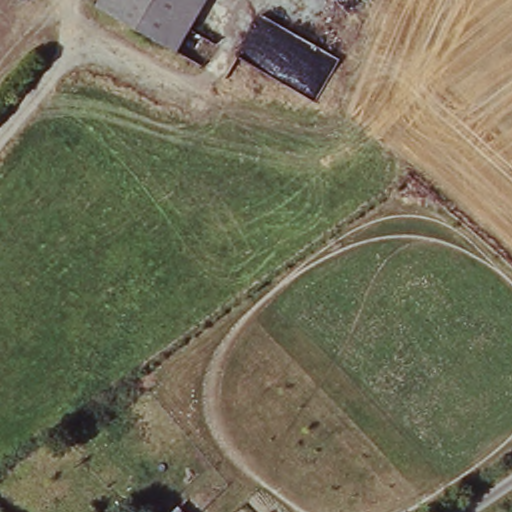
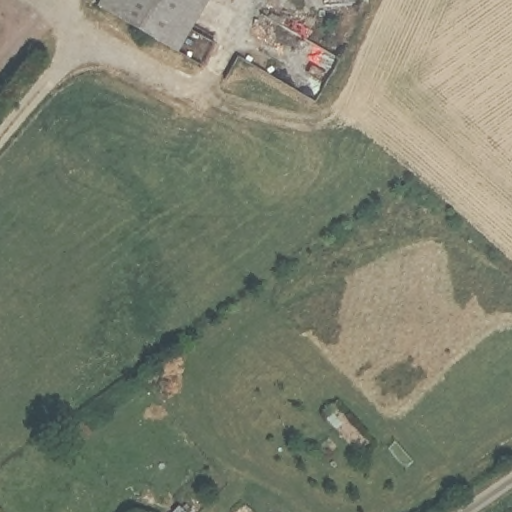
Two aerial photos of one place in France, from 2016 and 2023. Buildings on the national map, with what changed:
unchanged [(175,55),(102,14),(110,0),(183,0),(200,9),(175,55)]
unchanged [(183,0),(205,0),(200,9),(183,0)]

